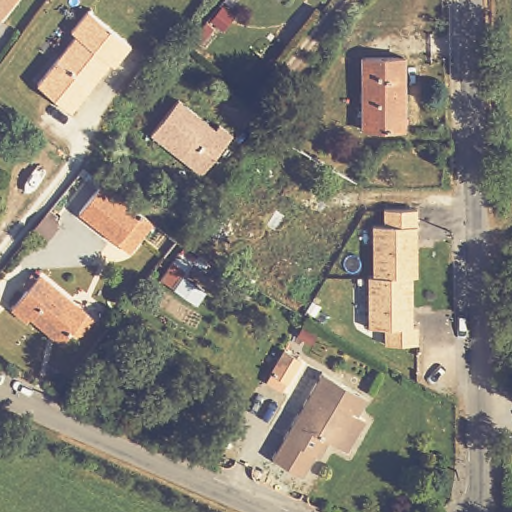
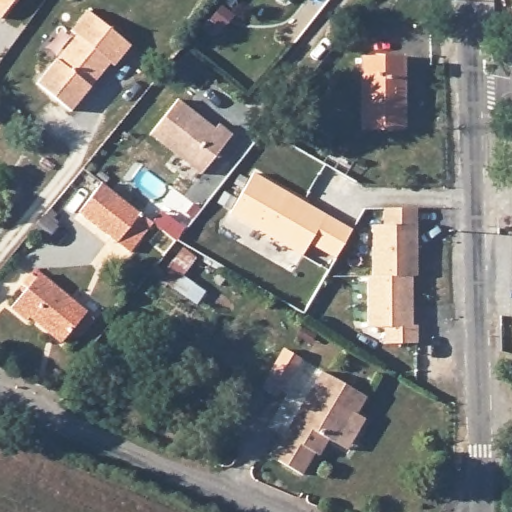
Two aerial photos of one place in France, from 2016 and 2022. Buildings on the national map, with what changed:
unchanged [(0,16),(0,0),(13,0),(0,16)]
unchanged [(134,47),(118,67),(111,63),(69,113),(37,85),(74,39),(69,34),(84,12),(134,47)]
unchanged [(403,129),(361,130),(362,59),(403,57),(403,129)]
unchanged [(222,125),(236,136),(203,175),(167,147),(153,135),(180,100),(196,111),(218,130),(222,125)]
new [(255,170),(330,210),(308,251),(233,211),(255,170)]
unchanged [(132,258),(116,246),(77,213),(97,185),(124,206),(139,217),(155,229),(132,258)]
unchanged [(419,210),(417,280),(411,280),(378,278),(380,227),(392,228),(392,210),(410,210),(419,210)]
unchanged [(206,290),(171,262),(180,250),(216,276),(206,290)]
unchanged [(38,276),(96,320),(85,335),(72,335),(62,347),(29,318),(25,323),(10,310),(38,276)]
unchanged [(413,330),(413,347),(386,347),(386,330),(374,330),(375,278),(378,278),(411,280),(410,330),(413,330)]
unchanged [(257,347),(274,325),(288,335),(271,357),(257,347)]
unchanged [(350,457),(337,448),(327,441),(320,450),(315,450),(296,472),(267,450),(328,371),(370,403),(359,418),(372,428),(350,457)]

